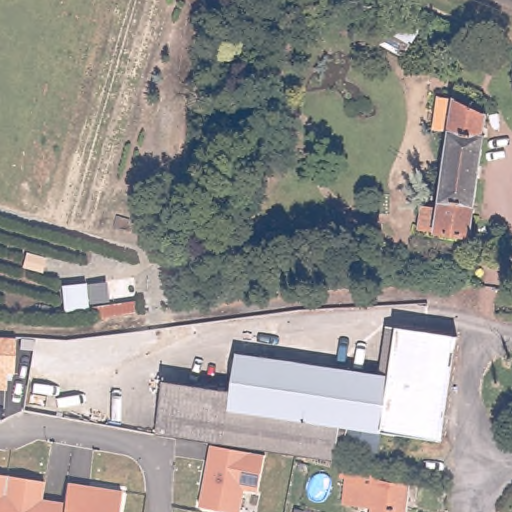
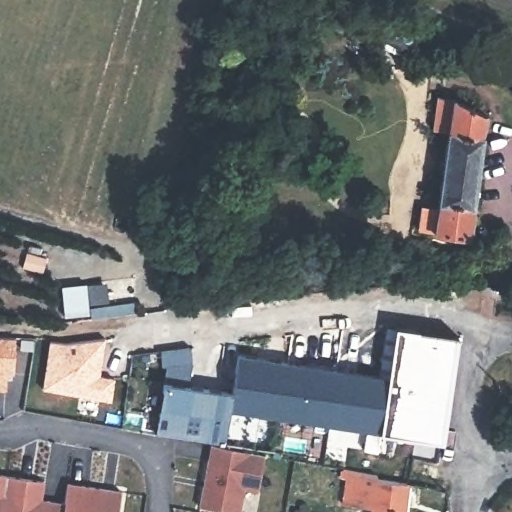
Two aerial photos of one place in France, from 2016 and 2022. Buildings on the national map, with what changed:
unchanged [(406,58),(376,43),(390,17),(421,33),(406,58)]
unchanged [(452,131),(437,128),(441,102),(455,104),(488,117),(483,136),(486,137),(471,236),(438,231),(422,229),(423,212),(440,214),(452,131)]
unchanged [(346,444),(350,426),(346,425),(338,461),(195,439),(179,437),(161,433),(169,383),(236,392),(242,355),(391,379),(398,328),(457,336),(443,441),(384,432),(381,450),(351,445),(346,444)]
new [(51,340),(66,343),(106,336),(100,374),(115,376),(111,399),(44,388),(51,340)]
unchanged [(11,373),(8,373),(7,390),(0,390),(0,337),(14,338),(11,373)]
unchanged [(244,489),(238,512),(231,512),(199,505),(209,445),(264,454),(256,491),(244,489)]
unchanged [(341,470),(408,484),(405,512),(369,512),(370,506),(356,503),(353,505),(340,503),(345,478),(340,477),(341,470)]
unchanged [(0,512),(0,473),(6,474),(0,512)]
unchanged [(40,498),(63,502),(62,512),(0,512),(6,474),(43,480),(40,498)]
unchanged [(66,482),(121,491),(117,512),(62,512),(63,502),(66,487),(66,482)]

